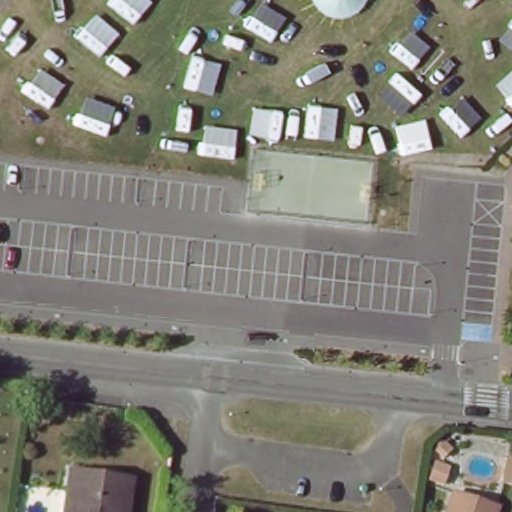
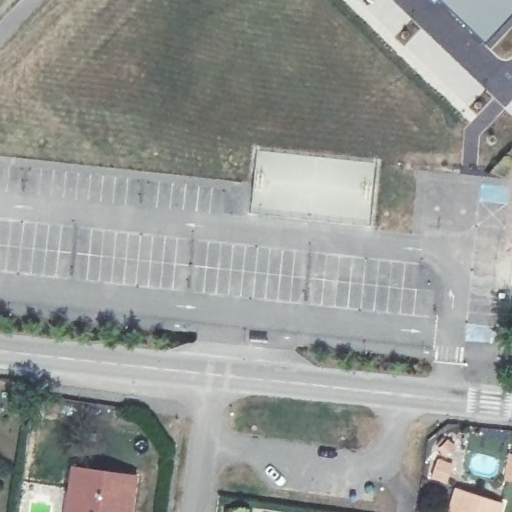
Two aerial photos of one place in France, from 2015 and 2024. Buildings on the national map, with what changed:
new [(485,44),(439,0),(512,0),(512,14),(485,44)]
unchanged [(122,472),(136,475),(130,512),(63,512),(70,463),(122,472)]
unchanged [(508,507),(506,512),(456,512),(464,491),(508,507)]

